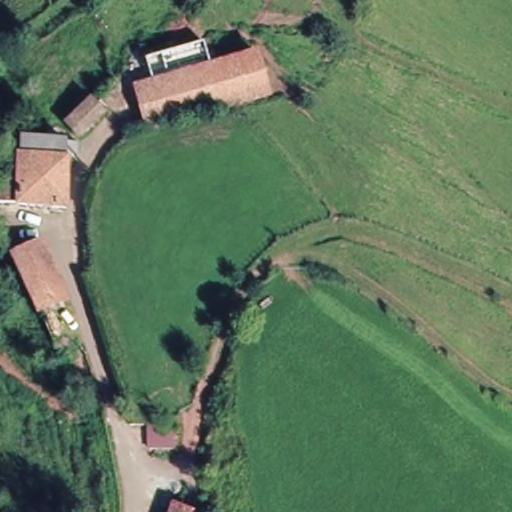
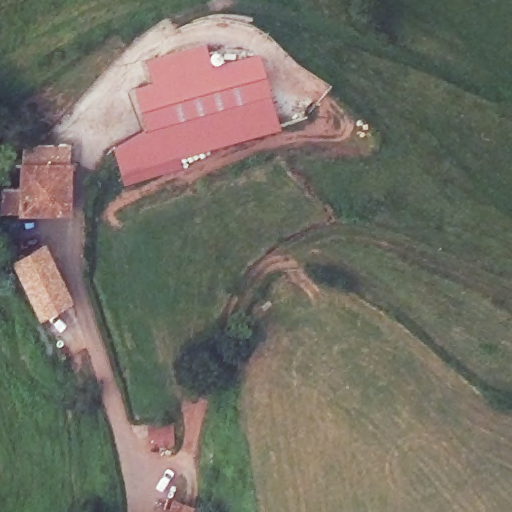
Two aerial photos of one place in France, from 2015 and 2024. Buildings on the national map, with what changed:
new [(180,160),(183,170),(124,186),(114,147),(146,129),(135,88),(153,82),(146,60),(206,42),(212,64),(260,51),(281,129),(180,160)]
demolished [(144,98),(141,83),(161,78),(258,55),(269,97),(218,109),(150,125),(144,98)]
demolished [(83,136),(70,122),(93,101),(104,116),(83,136)]
unchanged [(9,164),(8,160),(8,140),(69,138),(70,142),(69,149),(50,149),(48,162),(19,164),(9,164)]
unchanged [(1,208),(1,199),(1,184),(18,183),(19,164),(48,162),(50,149),(69,149),(65,208),(1,208)]
unchanged [(56,299),(34,309),(19,276),(11,256),(19,255),(44,243),(59,279),(66,296),(56,299)]
unchanged [(194,512),(164,512),(170,500),(194,512)]

